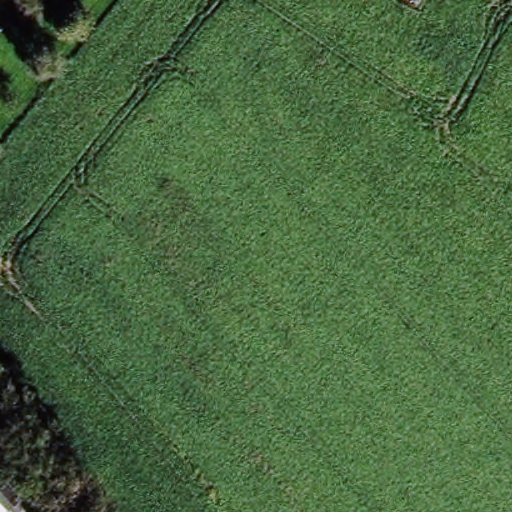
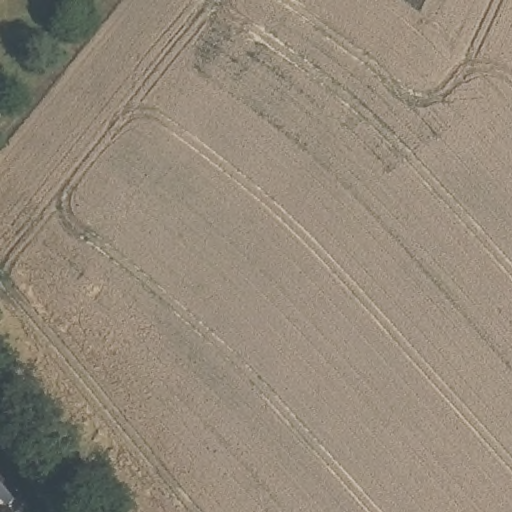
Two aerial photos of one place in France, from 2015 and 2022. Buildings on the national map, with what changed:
unchanged [(4,512),(0,512),(0,465),(27,495),(4,512)]

